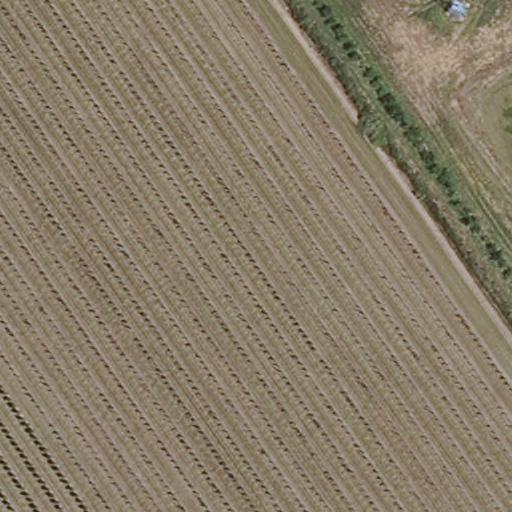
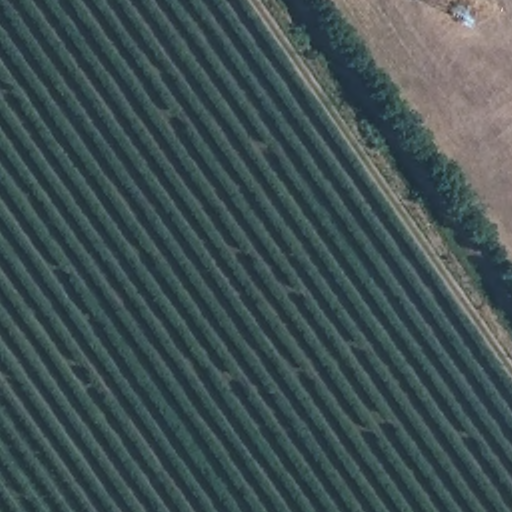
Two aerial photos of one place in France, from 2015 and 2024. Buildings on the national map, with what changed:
[]

